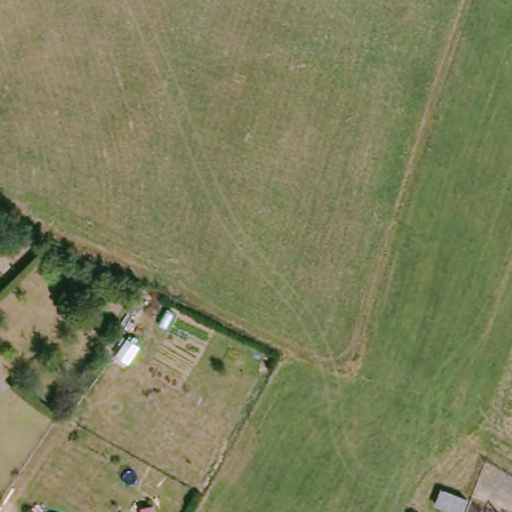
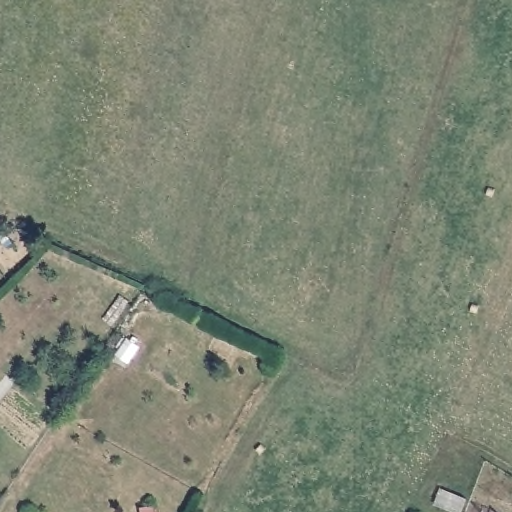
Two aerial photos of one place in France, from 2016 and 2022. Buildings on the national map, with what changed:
unchanged [(465,498),(460,512),(438,512),(431,510),(437,490),(448,494),(465,498)]

